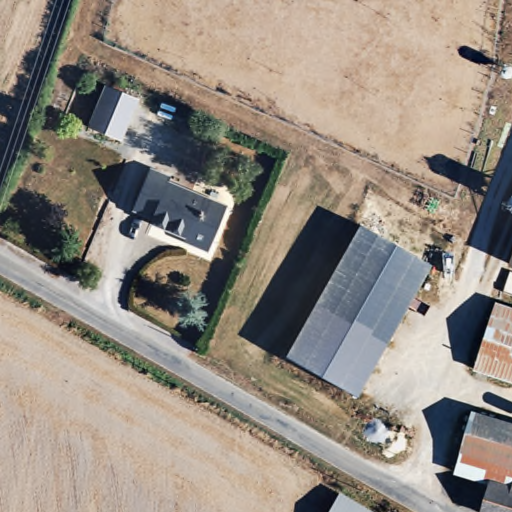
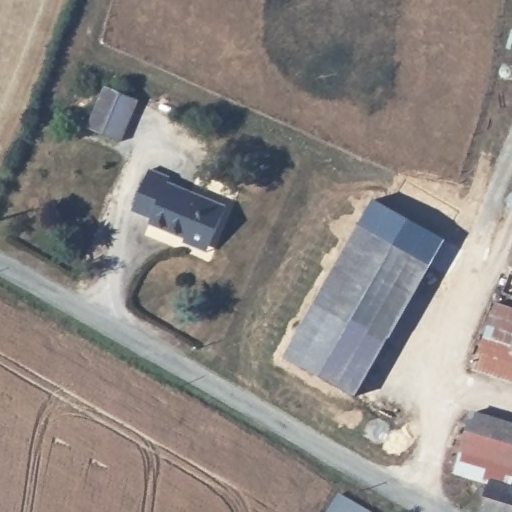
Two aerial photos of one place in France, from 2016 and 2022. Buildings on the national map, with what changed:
unchanged [(133,100),(117,143),(84,131),(100,88),(133,100)]
unchanged [(227,211),(212,247),(187,237),(185,243),(146,227),(149,220),(130,211),(148,169),(168,178),(165,185),(227,211)]
new [(373,198),(442,237),(427,264),(356,226),(373,198)]
unchanged [(427,264),(356,396),(285,358),(356,226),(427,264)]
unchanged [(512,385),(468,370),(492,303),(512,311),(512,385)]
unchanged [(512,477),(508,491),(483,485),(452,475),(472,413),(512,425),(512,477)]
unchanged [(512,477),(512,512),(489,512),(476,508),(483,485),(508,491),(512,477)]
unchanged [(327,512),(336,495),(365,512),(327,512)]

